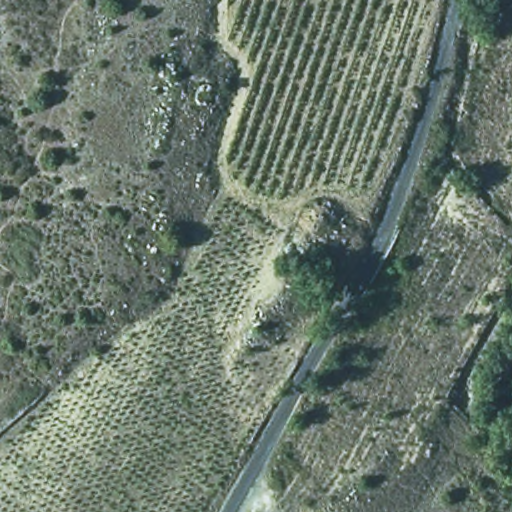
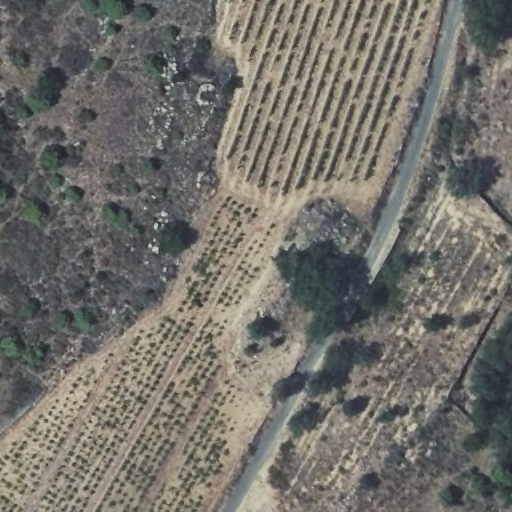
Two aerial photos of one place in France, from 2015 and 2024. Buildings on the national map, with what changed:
[]

